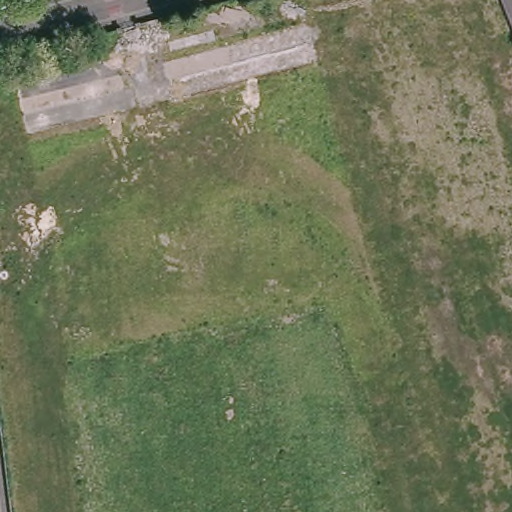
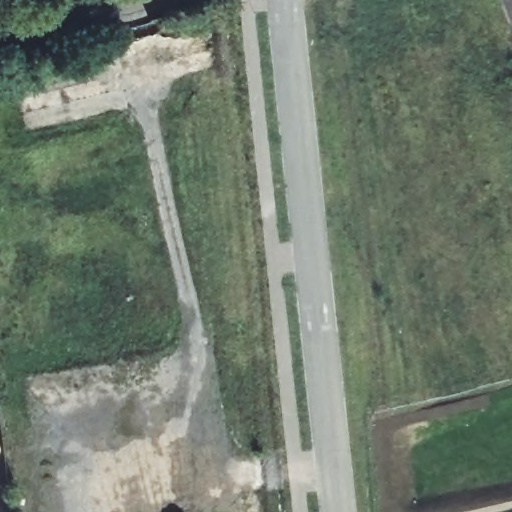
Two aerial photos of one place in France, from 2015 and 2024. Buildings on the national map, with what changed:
unchanged [(503,0),(512,0),(512,23),(507,8),(503,0)]

